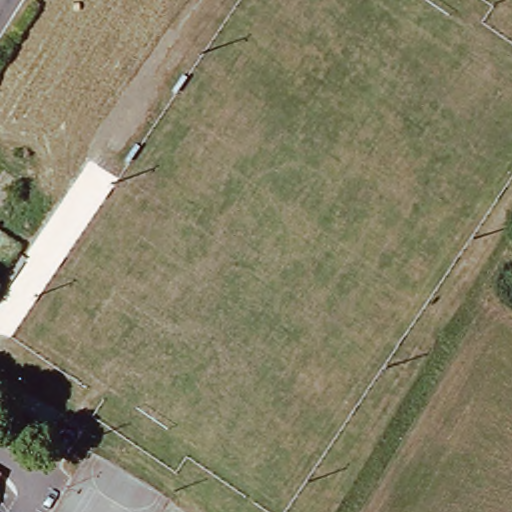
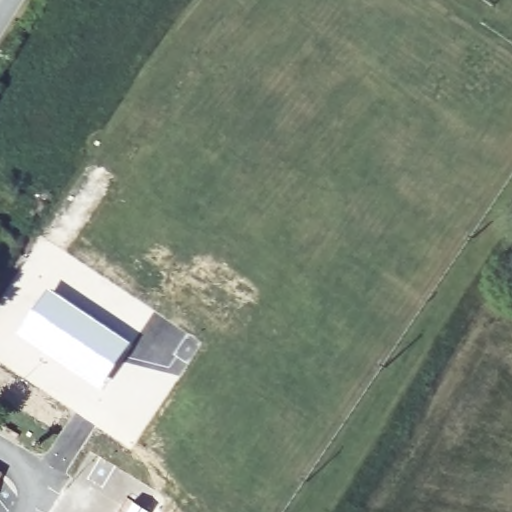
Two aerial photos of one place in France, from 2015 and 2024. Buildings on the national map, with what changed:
new [(49,287),(134,342),(102,389),(18,333),(49,287)]

